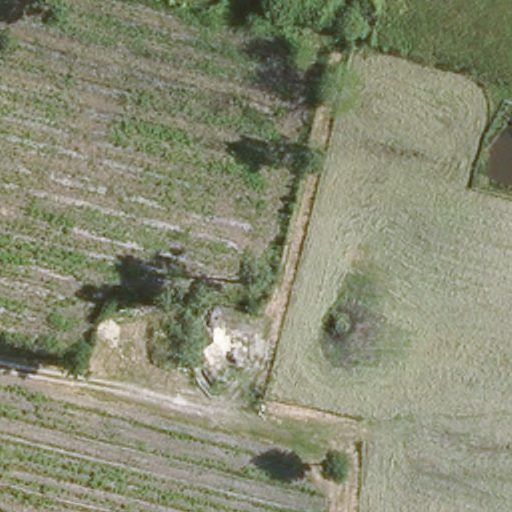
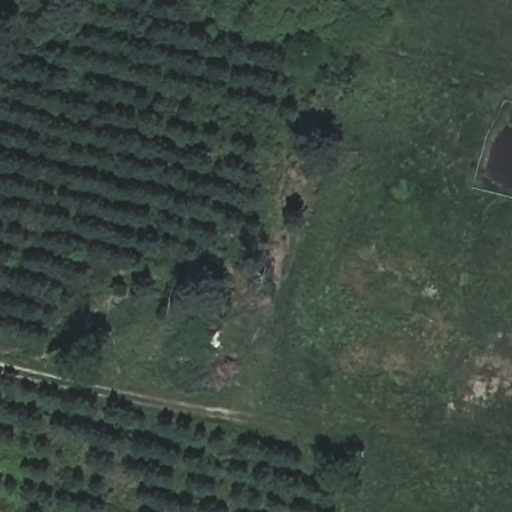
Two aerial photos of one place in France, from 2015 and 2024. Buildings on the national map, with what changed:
[]

